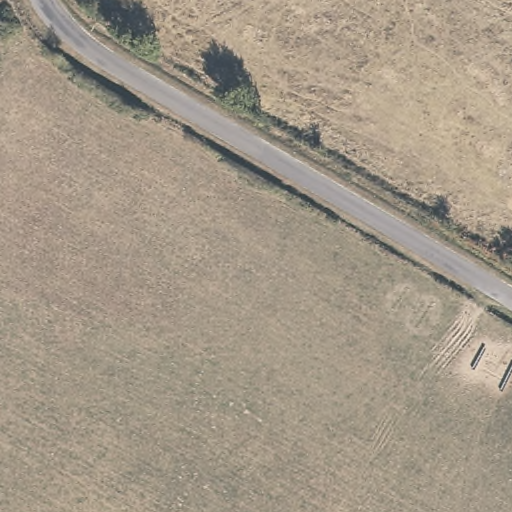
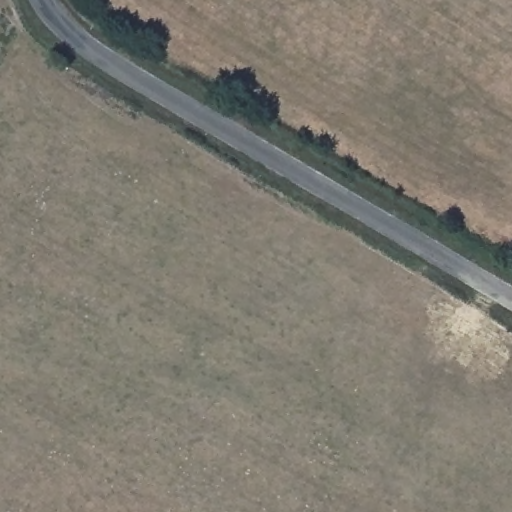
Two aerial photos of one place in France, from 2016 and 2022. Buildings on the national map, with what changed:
[]

